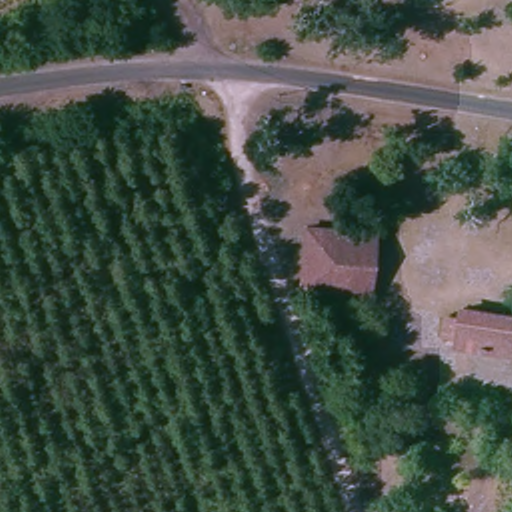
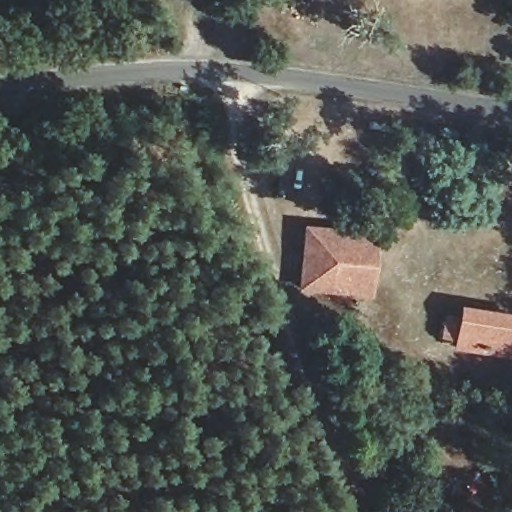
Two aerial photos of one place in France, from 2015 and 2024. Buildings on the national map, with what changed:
unchanged [(303,217),(370,221),(366,305),(300,299),(303,217)]
unchanged [(458,307),(511,315),(503,352),(452,342),(458,307)]

